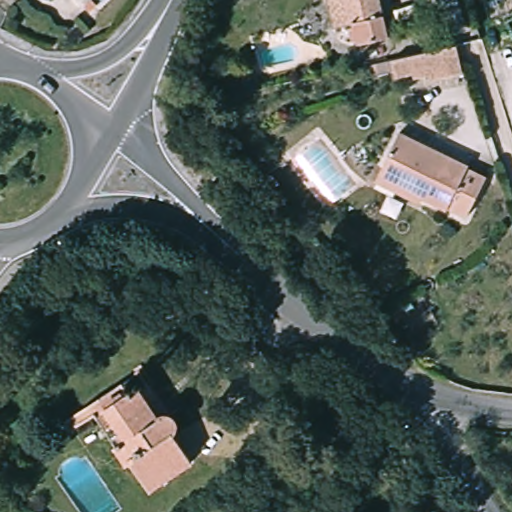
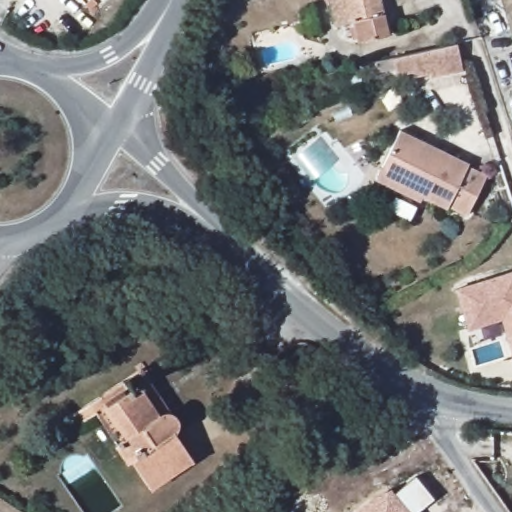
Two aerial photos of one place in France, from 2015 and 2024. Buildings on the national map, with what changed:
unchanged [(395,37),(361,45),(357,27),(337,30),(330,0),(386,0),(395,37)]
demolished [(267,71),(263,61),(262,55),(297,47),(298,53),(300,65),(267,71)]
unchanged [(394,63),(460,50),(467,81),(436,88),(433,82),(417,86),(415,81),(395,86),(394,63)]
unchanged [(432,191),(389,167),(406,134),(492,179),(474,215),(457,206),(451,214),(427,201),(432,191)]
unchanged [(432,191),(427,201),(422,210),(379,186),(389,167),(432,191)]
new [(512,272),(512,362),(498,320),(465,330),(452,291),(512,272)]
unchanged [(183,422),(178,430),(197,462),(157,485),(142,456),(133,460),(122,441),(129,433),(112,401),(145,382),(166,416),(172,412),(181,412),(183,422)]
new [(415,475),(435,498),(418,512),(354,512),(378,492),(390,487),(394,492),(415,475)]

